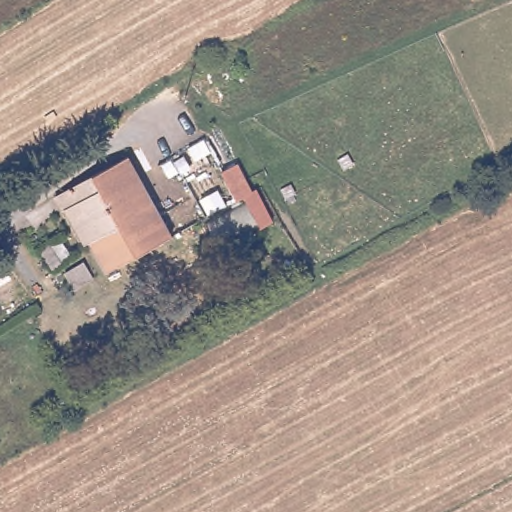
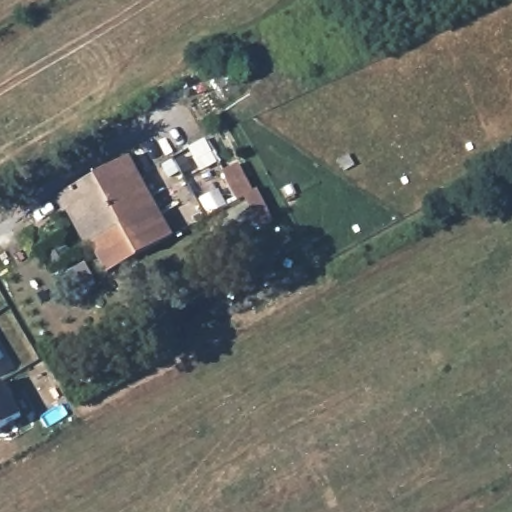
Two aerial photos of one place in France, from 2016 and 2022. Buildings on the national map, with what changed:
unchanged [(154,245),(135,256),(117,225),(88,242),(85,244),(66,209),(58,195),(69,189),(91,176),(125,156),(168,230),(171,236),(154,245)]
unchanged [(117,225),(135,256),(106,273),(102,265),(88,242),(117,225)]
new [(0,428),(0,382),(20,416),(0,428)]

